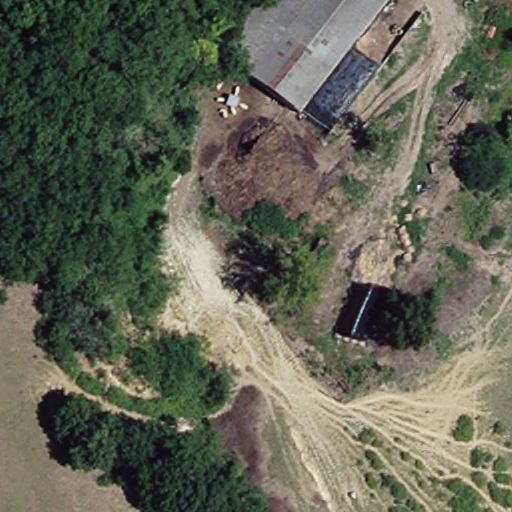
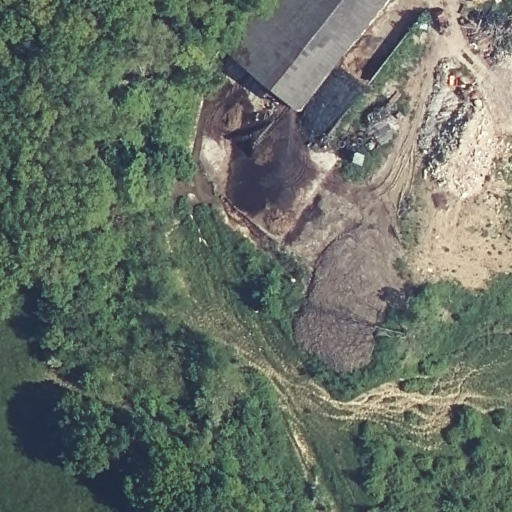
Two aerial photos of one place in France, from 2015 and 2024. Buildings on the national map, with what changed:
unchanged [(220,45),(256,0),(395,0),(304,113),(250,70),(220,45)]

